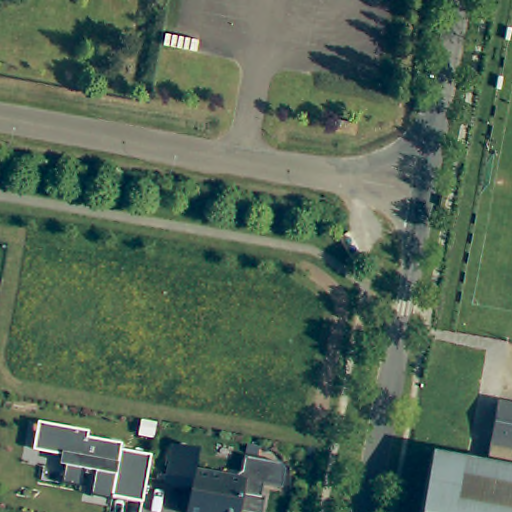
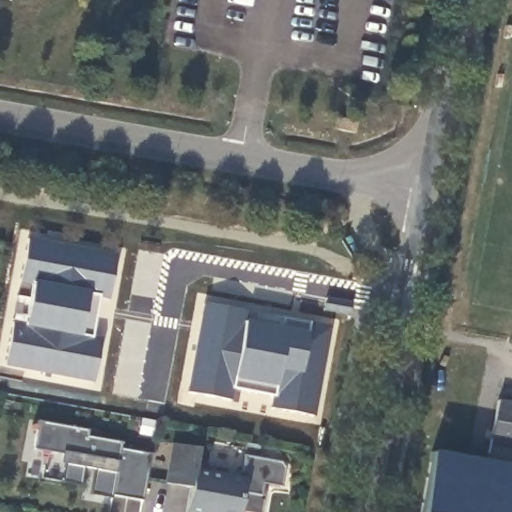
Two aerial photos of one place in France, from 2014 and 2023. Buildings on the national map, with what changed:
unchanged [(341,123),(363,128),(361,139),(338,134),(341,123)]
new [(114,294),(105,293),(97,332),(106,334),(97,378),(9,361),(17,317),(29,320),(36,279),(25,278),(32,233),(121,250),(114,294)]
new [(317,414),(274,406),(276,394),(236,386),(235,398),(192,390),(209,298),(251,306),(250,316),(290,324),(291,313),(334,321),(317,414)]
unchanged [(487,460),(498,399),(512,402),(512,465),(487,460)]
unchanged [(67,483),(72,456),(39,450),(45,421),(95,431),(94,437),(129,443),(127,450),(157,455),(156,464),(153,481),(149,502),(119,497),(118,500),(96,496),(101,471),(90,469),(86,487),(67,483)]
unchanged [(160,436),(147,433),(150,421),(161,423),(160,436)]
unchanged [(217,511),(215,512),(193,512),(196,489),(172,485),(180,445),(205,450),(201,472),(237,479),(246,472),(250,458),(287,464),(291,470),(287,489),(269,486),(267,497),(271,497),(268,512),(218,512),(217,511)]
unchanged [(263,456),(250,454),(252,446),(265,448),(263,456)]
unchanged [(433,450),(487,460),(512,465),(512,512),(423,512),(433,450)]

